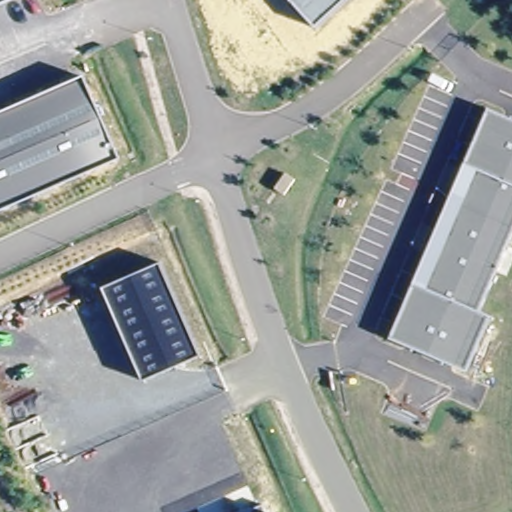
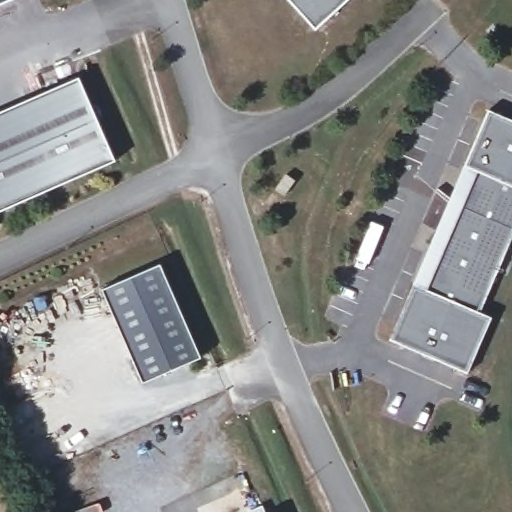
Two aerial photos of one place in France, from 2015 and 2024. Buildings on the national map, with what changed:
unchanged [(0,5),(0,0),(11,0),(0,5)]
unchanged [(315,27),(291,0),(345,0),(315,27)]
unchanged [(116,158),(0,209),(0,110),(78,75),(116,158)]
unchanged [(493,316),(469,372),(391,338),(415,282),(426,287),(441,252),(427,240),(451,210),(457,214),(477,169),(465,164),(489,108),(512,118),(512,239),(482,311),(493,316)]
unchanged [(287,178),(296,184),(285,199),(277,193),(287,178)]
unchanged [(202,354),(142,381),(102,289),(161,262),(202,354)]

